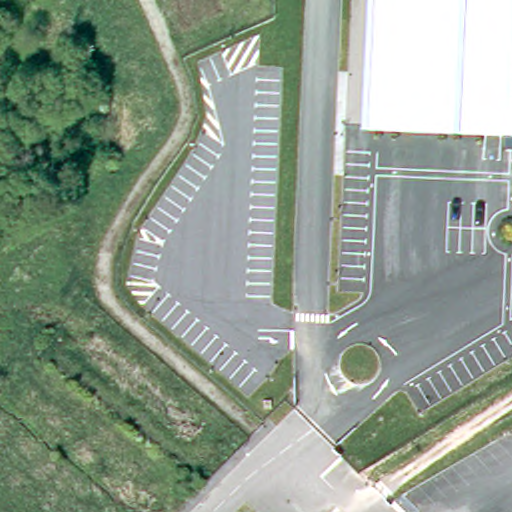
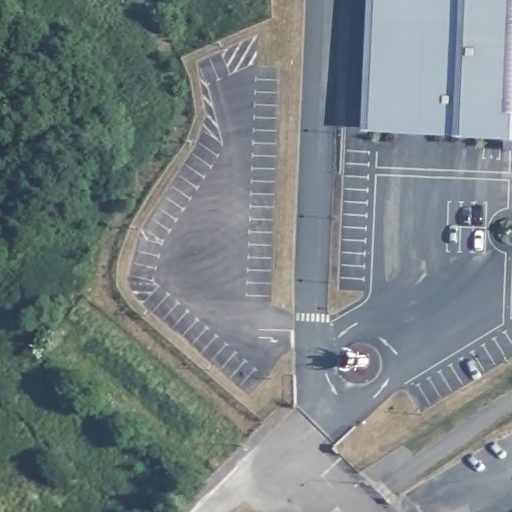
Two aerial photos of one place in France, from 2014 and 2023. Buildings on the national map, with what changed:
unchanged [(362,128),(368,0),(512,0),(512,134),(362,128)]

